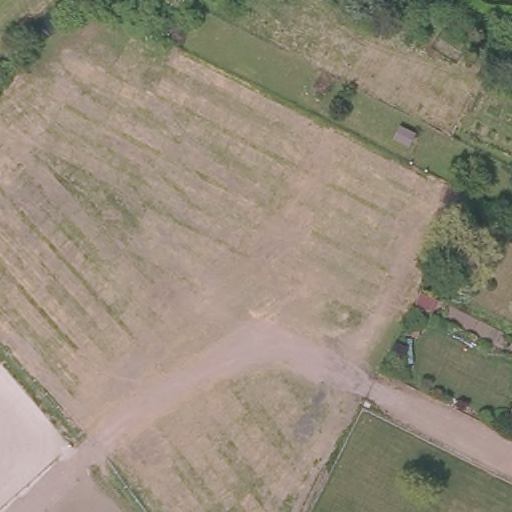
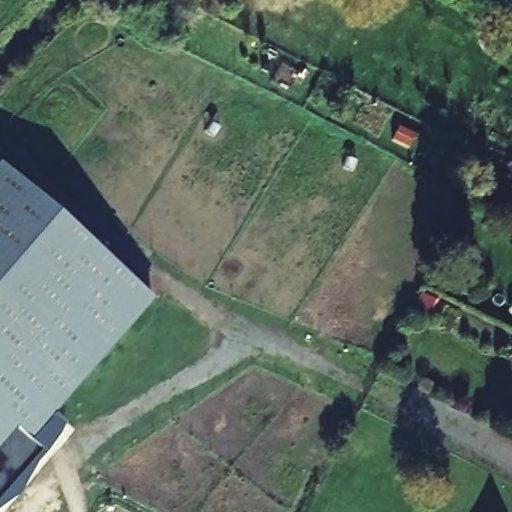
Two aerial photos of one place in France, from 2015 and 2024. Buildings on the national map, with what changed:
new [(154,298),(54,414),(66,423),(62,433),(46,454),(37,463),(23,493),(0,509),(0,164),(154,298)]

